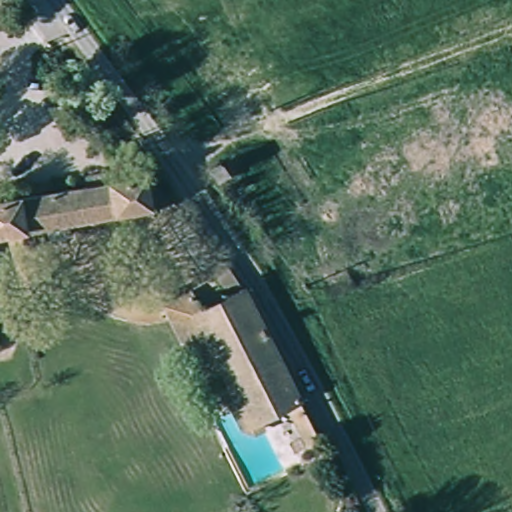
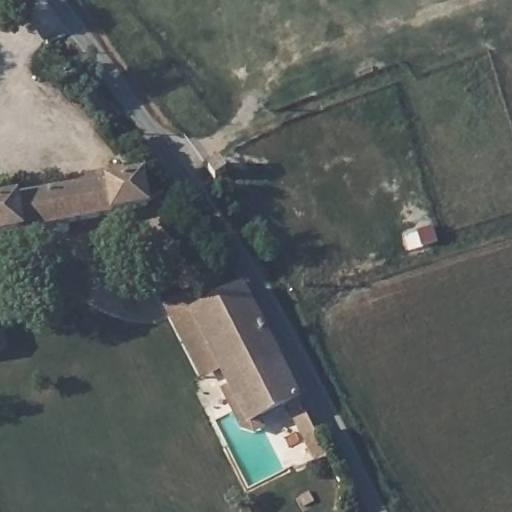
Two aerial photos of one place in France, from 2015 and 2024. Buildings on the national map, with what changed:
unchanged [(164,191),(130,195),(120,212),(44,226),(44,221),(10,225),(7,216),(0,217),(0,197),(158,171),(164,191)]
unchanged [(182,311),(234,280),(290,388),(245,417),(182,311)]

